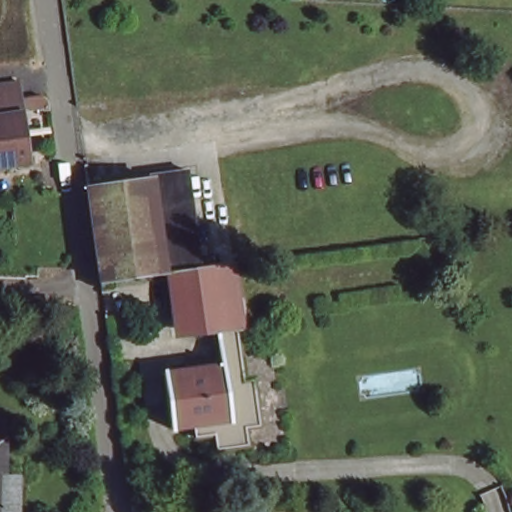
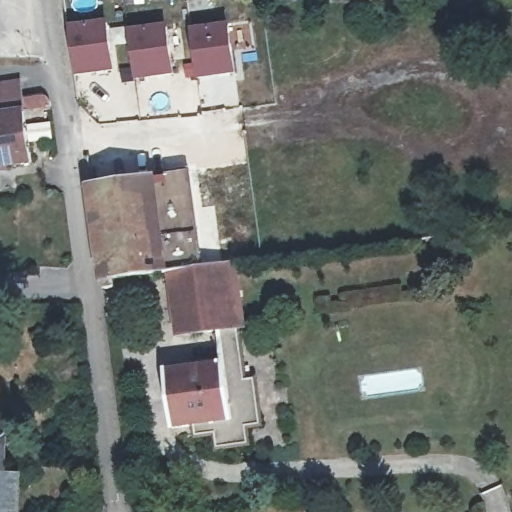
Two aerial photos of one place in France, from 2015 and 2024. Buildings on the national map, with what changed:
new [(114,75),(75,78),(69,26),(106,21),(114,75)]
new [(196,81),(187,29),(229,22),(237,76),(196,81)]
new [(135,82),(127,30),(167,24),(175,75),(135,82)]
unchanged [(21,88),(23,105),(33,104),(35,115),(23,116),(30,168),(0,172),(0,91),(21,88)]
unchanged [(106,295),(105,287),(91,194),(153,185),(152,180),(188,175),(204,275),(186,276),(117,285),(118,292),(106,295)]
unchanged [(237,270),(246,333),(240,334),(247,382),(256,381),(263,430),(248,432),(250,448),(221,451),(220,439),(200,441),(199,430),(176,433),(168,376),(227,370),(222,336),(195,340),(186,276),(204,275),(237,270)]
unchanged [(8,426),(8,480),(24,480),(24,512),(0,512),(0,426),(8,426)]

